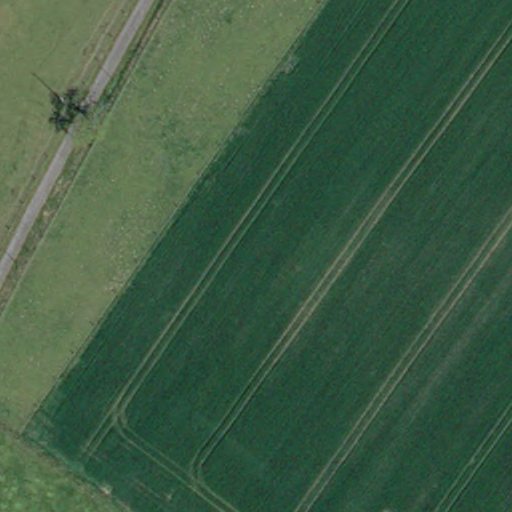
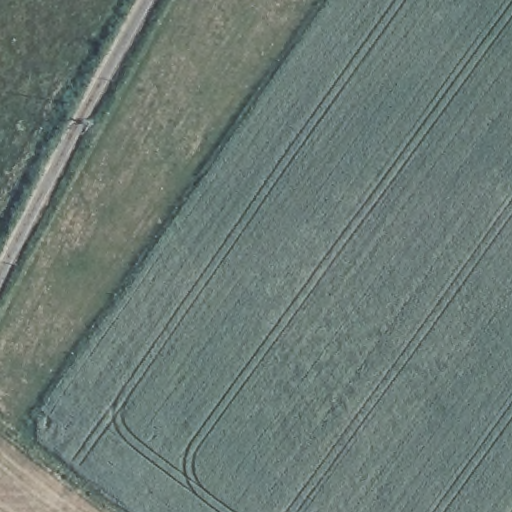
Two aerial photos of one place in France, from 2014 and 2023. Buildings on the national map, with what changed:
[]

